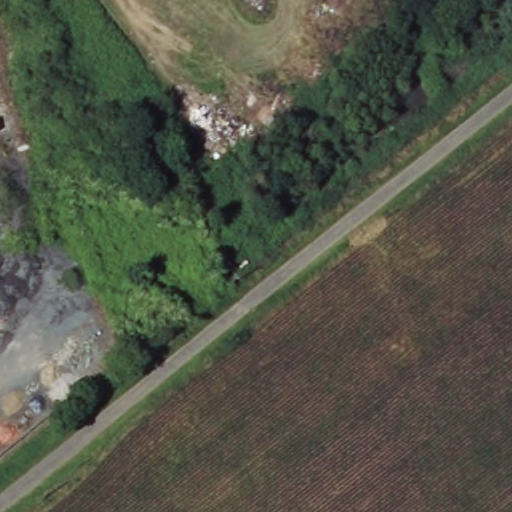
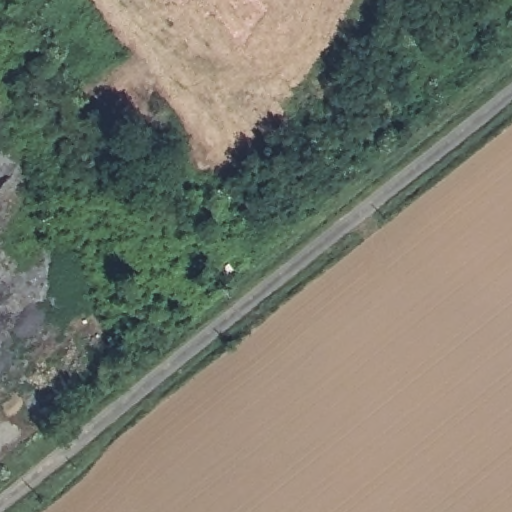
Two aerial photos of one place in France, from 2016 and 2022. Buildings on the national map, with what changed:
[]

